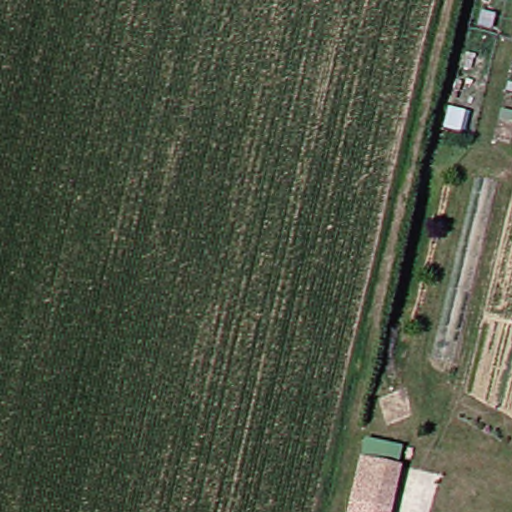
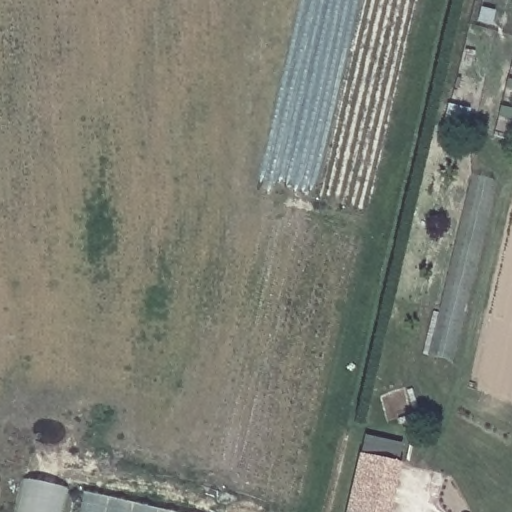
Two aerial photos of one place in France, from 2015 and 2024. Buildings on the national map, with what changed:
unchanged [(403,441),(399,460),(404,461),(394,512),(350,512),(367,436),(403,441)]
new [(67,489),(62,512),(17,512),(24,479),(67,489)]
new [(79,512),(83,492),(165,512),(79,512)]

